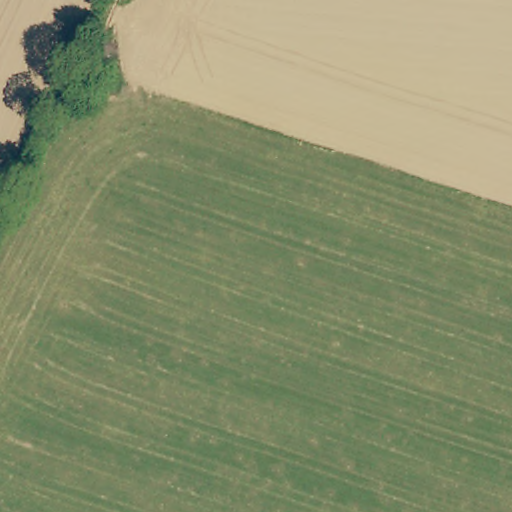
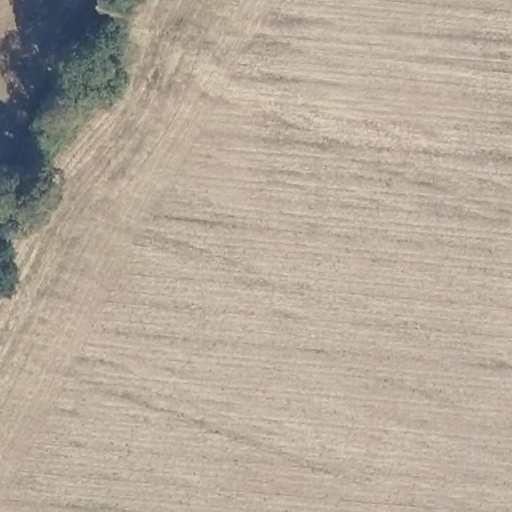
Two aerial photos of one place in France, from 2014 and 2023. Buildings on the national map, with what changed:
[]

